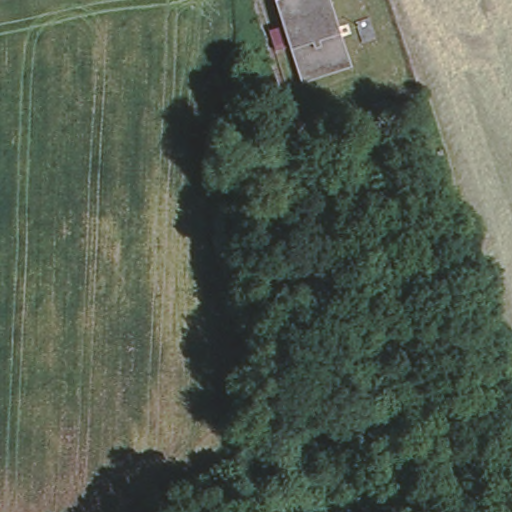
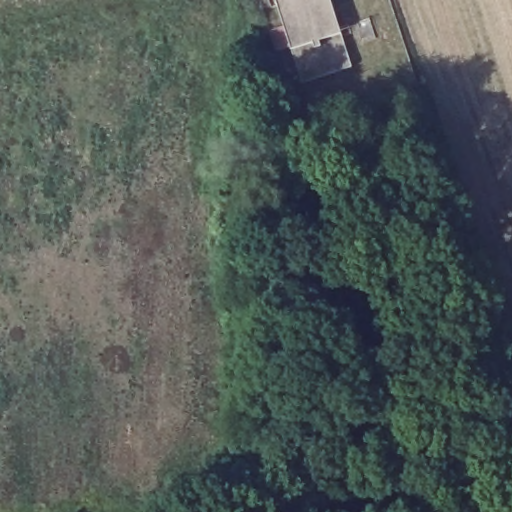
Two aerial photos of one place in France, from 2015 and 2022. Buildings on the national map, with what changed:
unchanged [(307,81),(284,0),(334,0),(354,67),(307,81)]

